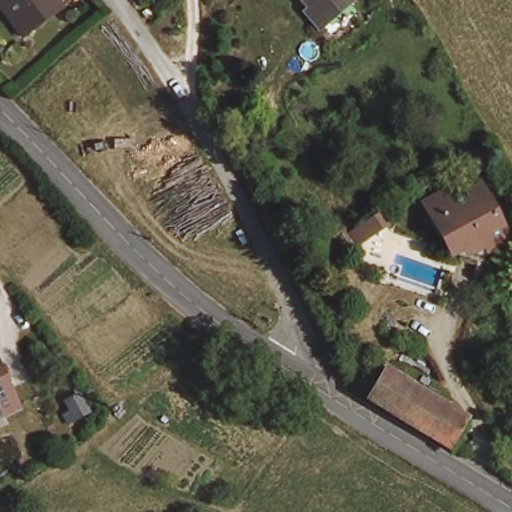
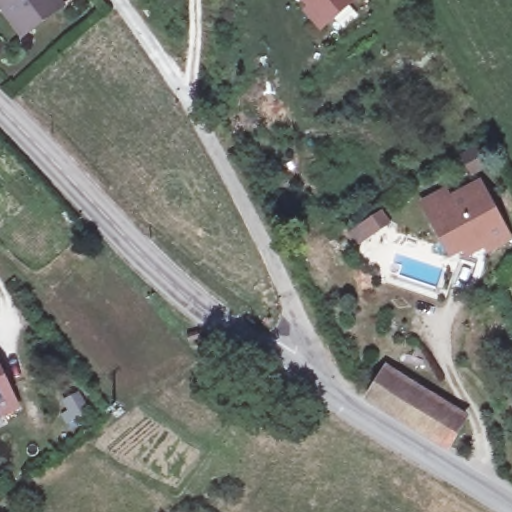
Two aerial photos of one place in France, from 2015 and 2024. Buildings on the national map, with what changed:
unchanged [(0,8),(0,0),(57,0),(62,6),(22,38),(0,8)]
unchanged [(313,0),(346,0),(328,17),(313,0)]
unchanged [(457,136),(472,128),(483,149),(468,157),(457,136)]
unchanged [(485,244),(481,261),(447,250),(448,242),(431,208),(420,186),(438,175),(445,185),(475,169),(506,227),(490,237),(482,240),(485,244)]
unchanged [(367,215),(361,205),(377,193),(385,204),(367,215)]
unchanged [(455,439),(391,398),(375,388),(391,363),(407,372),(470,413),(455,439)]
unchanged [(18,408),(1,417),(0,417),(0,370),(18,408)]

